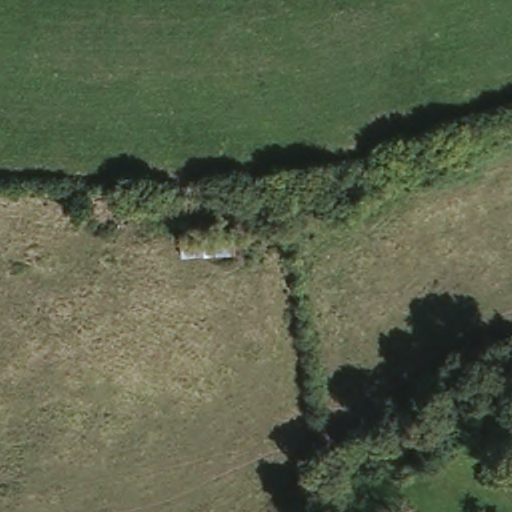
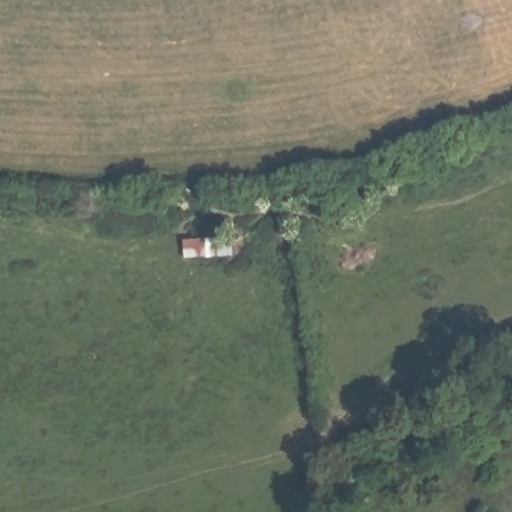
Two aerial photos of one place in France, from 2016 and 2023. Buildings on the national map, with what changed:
unchanged [(236,239),(236,260),(184,263),(182,242),(236,239)]

